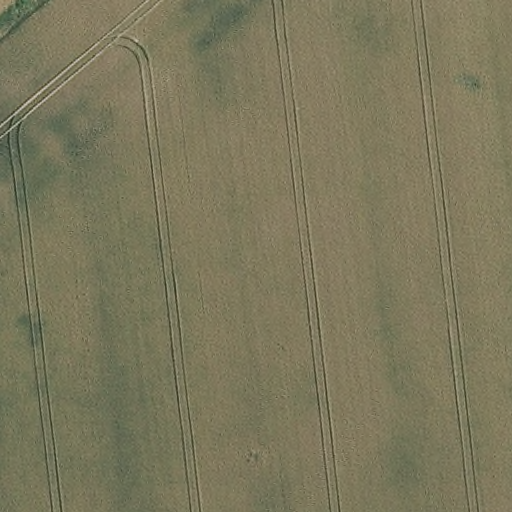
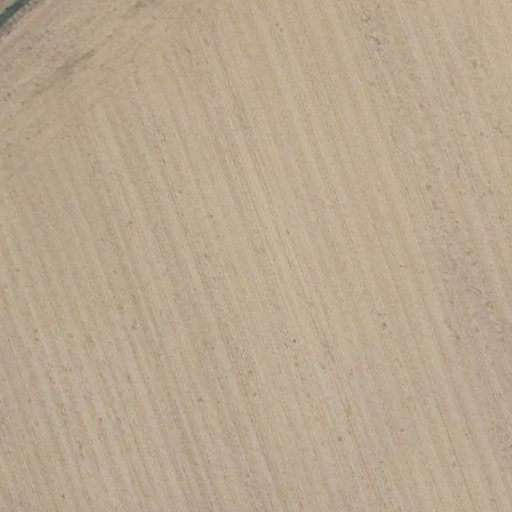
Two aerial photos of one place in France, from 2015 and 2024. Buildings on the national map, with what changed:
[]

